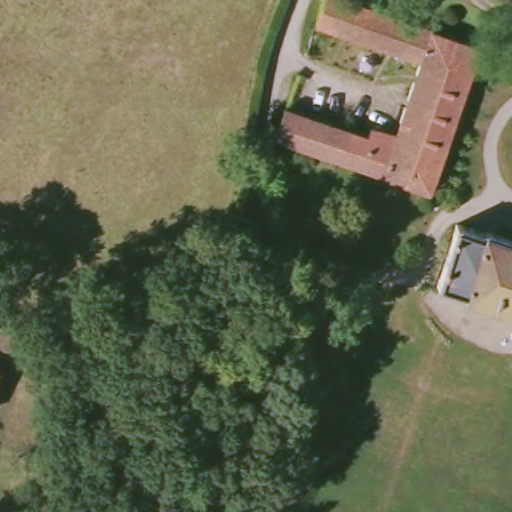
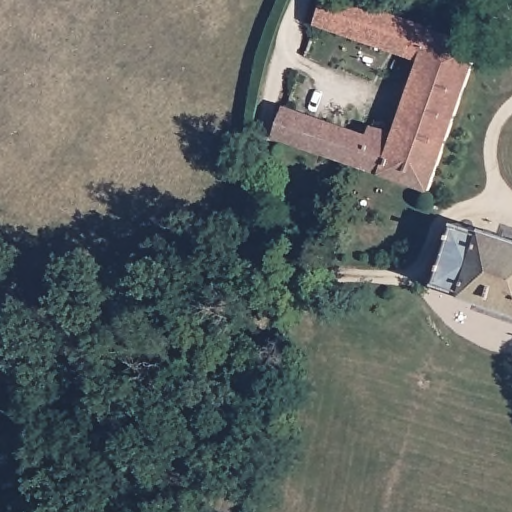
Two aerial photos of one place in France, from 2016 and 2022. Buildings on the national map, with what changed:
unchanged [(317,23),(324,0),(346,0),(433,30),(422,60),(317,23)]
unchanged [(480,47),(430,191),(361,170),(369,138),(373,129),(396,135),(422,60),(433,30),(480,47)]
unchanged [(277,136),(287,108),(369,138),(361,170),(277,136)]
unchanged [(471,294),(443,285),(462,223),(483,230),(490,232),(491,230),(512,237),(512,311),(470,296),(471,294)]
unchanged [(4,370),(0,386),(0,369),(4,370)]

